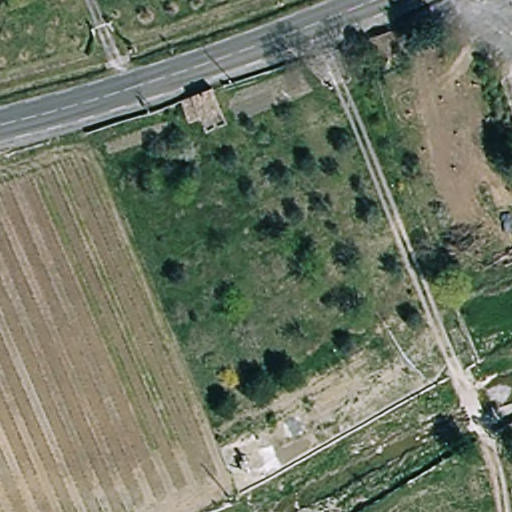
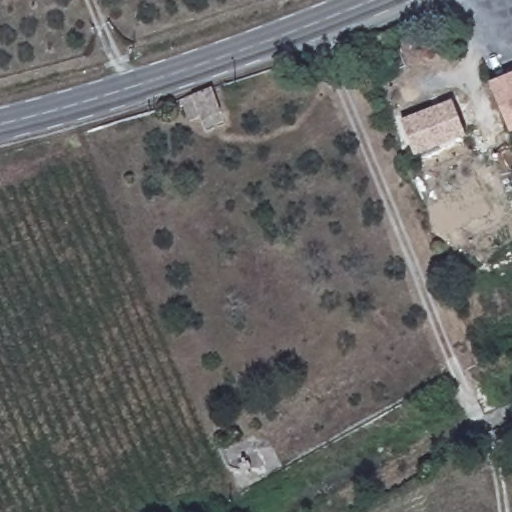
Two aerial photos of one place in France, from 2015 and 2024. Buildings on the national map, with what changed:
demolished [(503,7),(512,2),(512,29),(503,7)]
unchanged [(383,58),(374,39),(391,32),(399,51),(383,58)]
new [(512,73),(512,132),(510,133),(489,83),(512,73)]
unchanged [(227,108),(198,117),(192,96),(220,86),(227,108)]
new [(452,99),(467,135),(414,156),(400,119),(452,99)]

